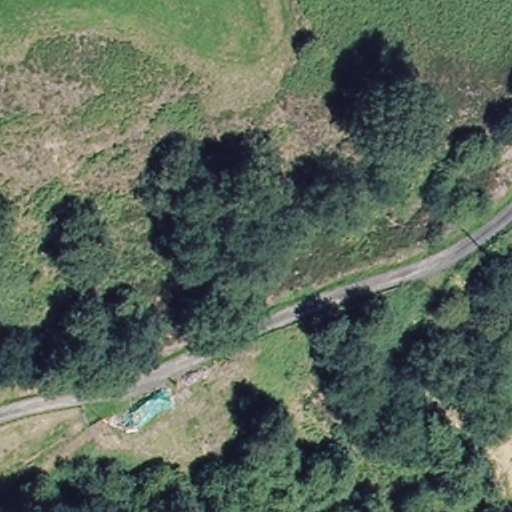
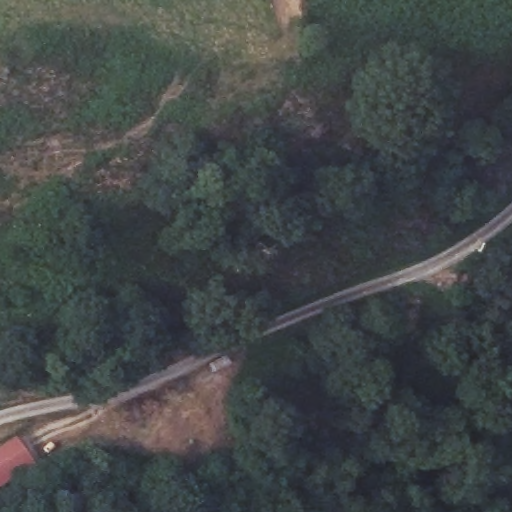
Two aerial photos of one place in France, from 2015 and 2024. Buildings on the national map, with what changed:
new [(35,466),(0,487),(0,448),(18,437),(35,466)]

